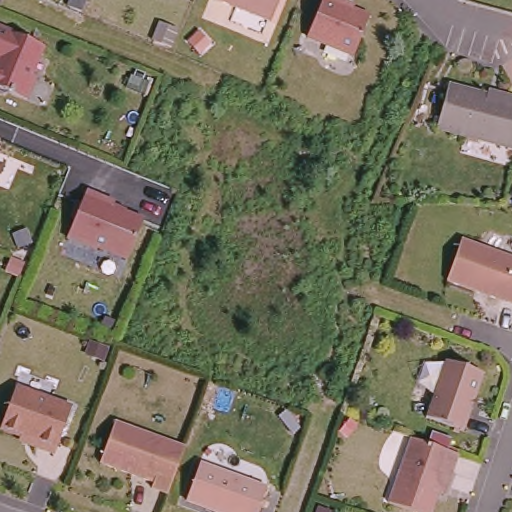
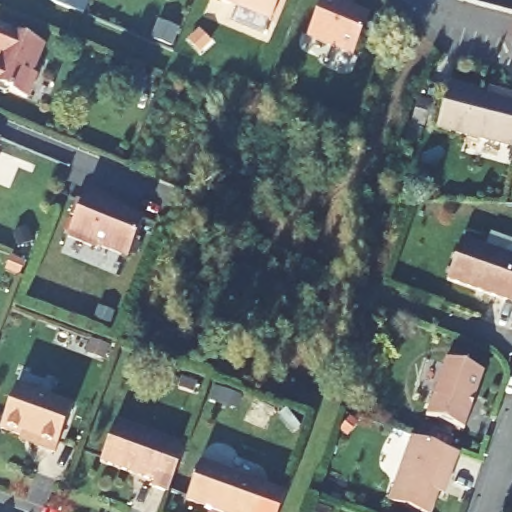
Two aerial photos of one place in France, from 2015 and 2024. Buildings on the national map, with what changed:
unchanged [(274,14),(242,0),(280,0),(274,14)]
unchanged [(324,0),(351,0),(375,10),(358,50),(311,30),(324,0)]
unchanged [(37,70),(41,72),(31,95),(15,88),(10,90),(1,86),(0,84),(0,64),(5,54),(0,52),(0,21),(48,41),(37,70)]
unchanged [(435,124),(446,81),(510,99),(510,95),(512,95),(512,146),(435,124)]
unchanged [(0,153),(0,132),(7,135),(0,153)]
unchanged [(102,245),(101,248),(71,235),(80,217),(75,215),(82,199),(86,201),(91,189),(119,201),(117,206),(148,219),(131,258),(102,245)]
unchanged [(450,279),(465,237),(512,253),(512,301),(450,279)]
unchanged [(429,417),(449,360),(487,374),(466,430),(429,417)]
unchanged [(70,403),(52,450),(31,442),(33,438),(0,425),(0,418),(13,382),(70,403)]
unchanged [(118,418),(188,444),(186,450),(171,492),(155,485),(156,480),(102,459),(118,418)]
unchanged [(460,455),(455,471),(448,469),(432,512),(418,512),(389,501),(413,437),(435,445),(460,455)]
unchanged [(271,481),(259,512),(240,512),(190,493),(203,456),(271,481)]

